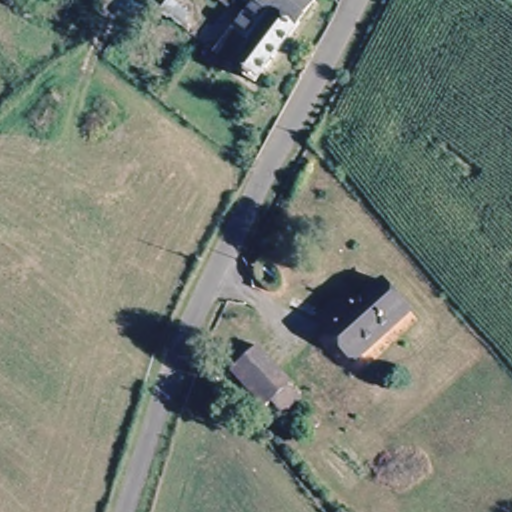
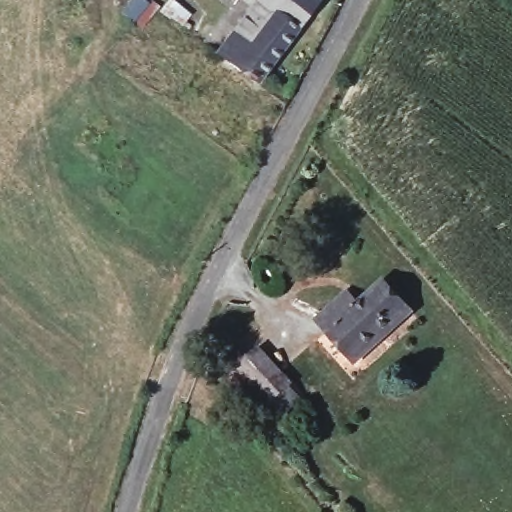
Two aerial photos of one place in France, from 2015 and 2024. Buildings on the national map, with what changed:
unchanged [(139,25),(131,17),(148,0),(150,0),(157,7),(139,25)]
unchanged [(190,16),(182,26),(160,9),(168,0),(190,16)]
unchanged [(297,24),(257,77),(218,48),(253,1),(252,0),(314,0),(297,24)]
unchanged [(229,1),(228,0),(230,0),(229,1)]
unchanged [(379,341),(355,362),(317,320),(348,292),(358,304),(384,280),(408,306),(412,311),(379,341)]
unchanged [(285,413),(274,400),(266,406),(233,369),(258,348),(290,385),(302,398),(285,413)]

